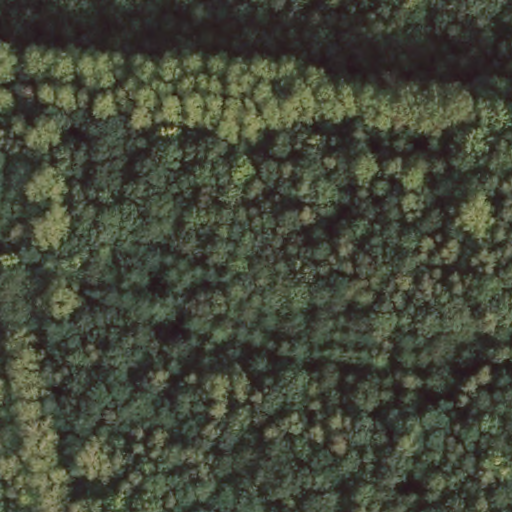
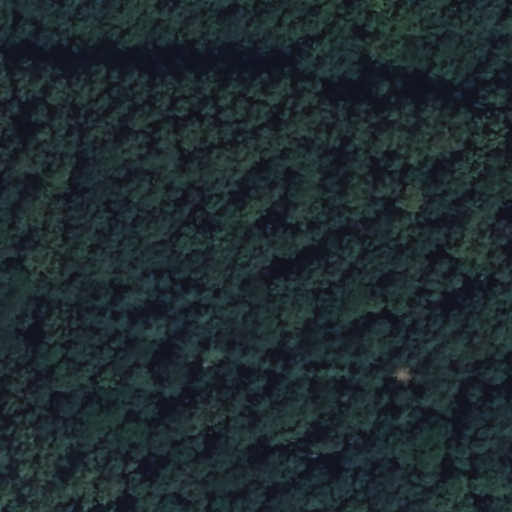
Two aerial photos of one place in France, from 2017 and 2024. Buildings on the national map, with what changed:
unchanged [(49,334),(25,335),(22,293),(46,290),(49,334)]

